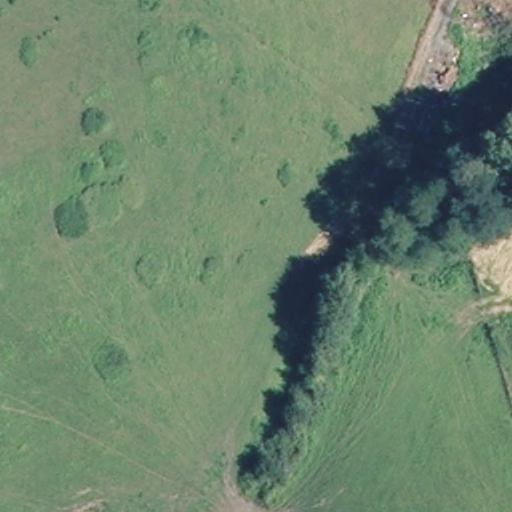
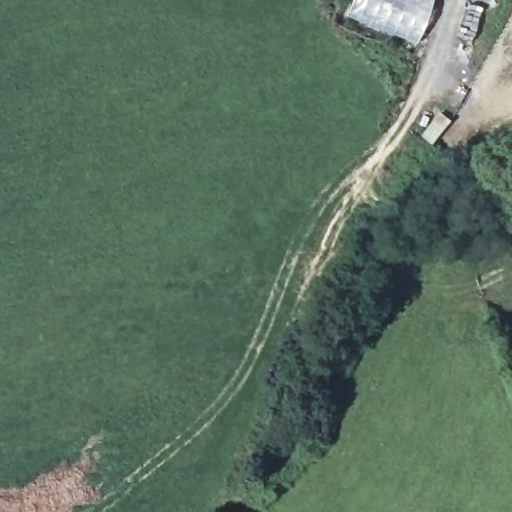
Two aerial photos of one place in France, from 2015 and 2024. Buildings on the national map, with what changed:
new [(351,0),(433,0),(416,44),(345,15),(351,0)]

